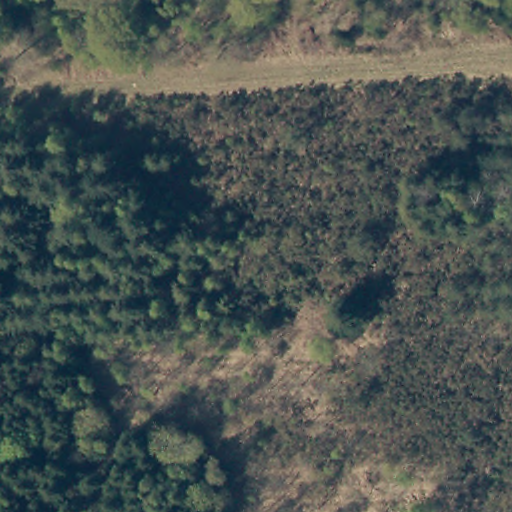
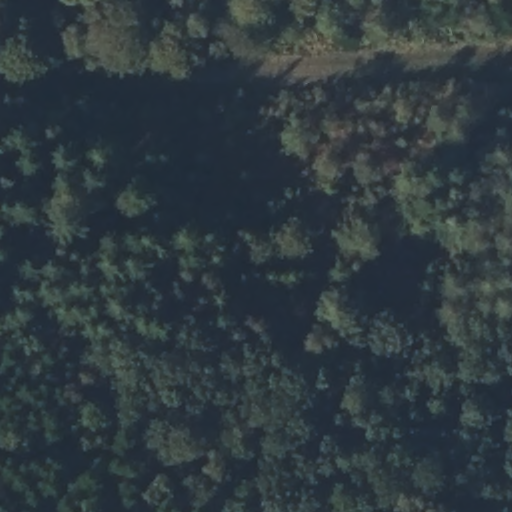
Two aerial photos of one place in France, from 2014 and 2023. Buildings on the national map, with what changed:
[]

